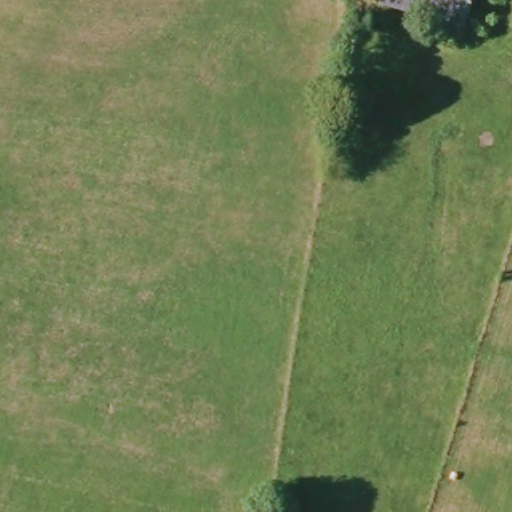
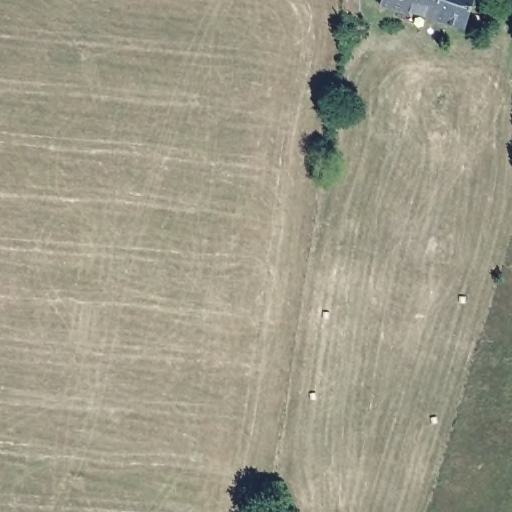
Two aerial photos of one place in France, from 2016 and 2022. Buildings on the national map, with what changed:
unchanged [(379,7),(381,0),(468,0),(461,30),(379,7)]

